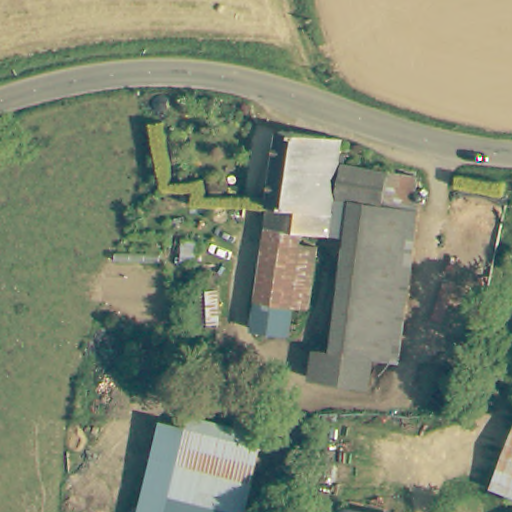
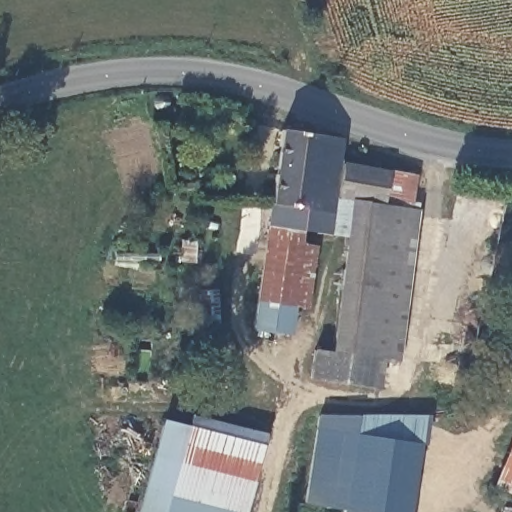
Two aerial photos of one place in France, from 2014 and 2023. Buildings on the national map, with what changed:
unchanged [(168,121),(172,126),(173,133),(169,135),(162,135),(159,130),(158,122),(168,121)]
unchanged [(338,191),(331,234),(301,230),(299,240),(270,235),(287,129),(346,136),(342,158),(421,169),(392,355),(371,351),(331,345),(354,194),(338,191)]
unchanged [(257,313),(261,291),(270,235),(299,240),(319,243),(310,299),(298,297),(295,319),(257,313)]
unchanged [(215,308),(216,341),(196,340),(194,323),(193,308),(215,308)]
unchanged [(366,381),(312,372),(316,342),(331,345),(371,351),(366,381)]
new [(186,427),(190,414),(266,433),(260,446),(186,427)]
unchanged [(247,512),(143,512),(166,422),(263,447),(247,512)]
new [(343,510),(303,505),(316,428),(421,444),(408,512),(372,512),(343,508),(343,510)]
unchanged [(497,482),(512,434),(512,487),(497,482)]
unchanged [(373,512),(343,512),(343,508),(373,512)]

